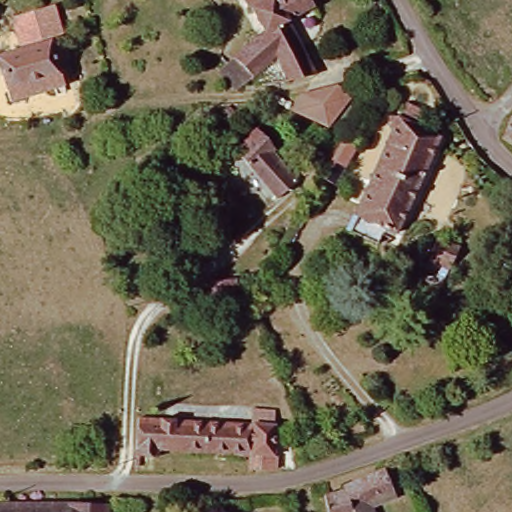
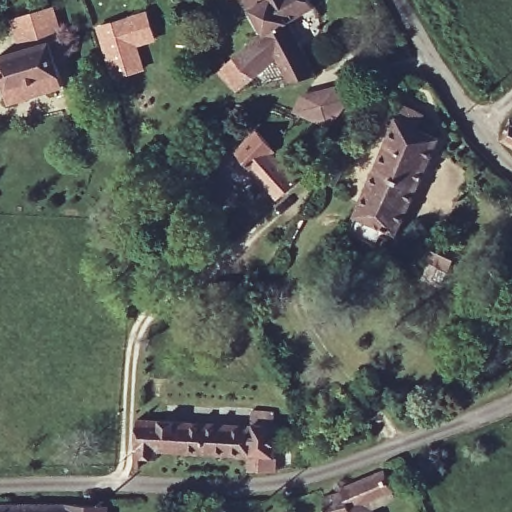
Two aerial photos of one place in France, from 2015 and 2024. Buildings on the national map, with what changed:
unchanged [(295,17),(289,22),(267,35),(247,0),(310,0),(314,7),(305,12),(295,17)]
unchanged [(12,21),(57,7),(67,41),(51,46),(22,55),(12,21)]
new [(147,10),(157,41),(139,47),(145,71),(108,81),(94,26),(147,10)]
unchanged [(321,81),(296,88),(284,65),(260,85),(237,62),(252,42),(267,35),(289,22),(321,81)]
unchanged [(51,46),(64,90),(9,106),(0,75),(0,62),(51,46)]
unchanged [(339,87),(352,99),(328,127),(292,112),(299,95),(339,87)]
unchanged [(376,245),(349,234),(400,119),(440,138),(394,240),(381,236),(376,245)]
unchanged [(512,126),(512,146),(504,140),(512,126)]
unchanged [(273,200),(260,184),(236,157),(242,152),(258,136),(277,156),(275,160),(281,166),(295,182),(273,200)]
unchanged [(250,477),(250,463),(157,456),(157,463),(137,462),(140,420),(251,429),(252,416),(271,417),(269,447),(274,448),(275,473),(250,477)]
unchanged [(321,497),(343,491),(342,489),(379,468),(391,490),(397,499),(376,512),(326,512),(321,497)]
unchanged [(8,507),(112,511),(111,512),(0,512),(0,508),(8,507)]

